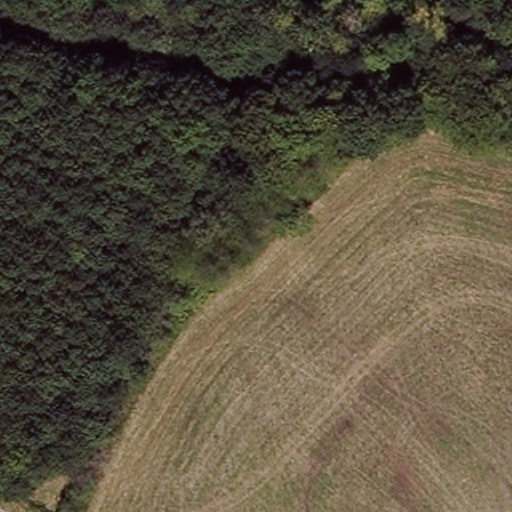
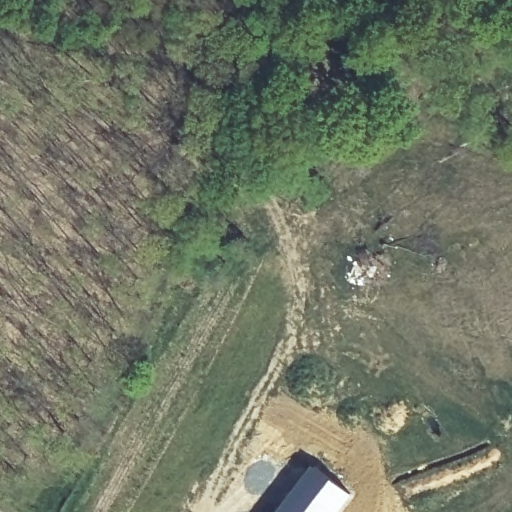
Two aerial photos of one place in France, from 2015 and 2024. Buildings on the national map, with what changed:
new [(314,464),(354,496),(341,512),(276,512),(314,464)]

